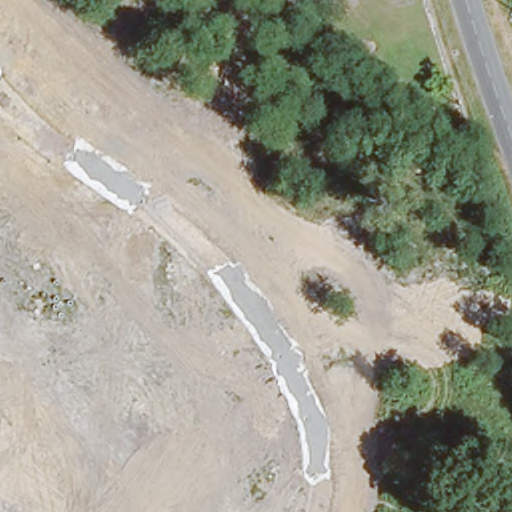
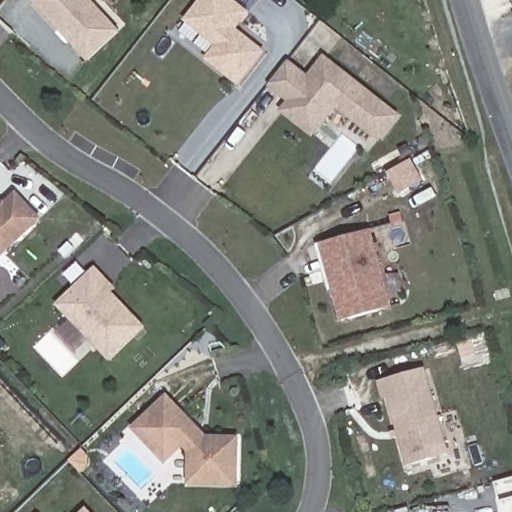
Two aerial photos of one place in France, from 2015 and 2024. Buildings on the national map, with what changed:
new [(87,0),(119,33),(88,62),(32,1),(33,0),(87,0)]
new [(266,52),(239,86),(204,60),(215,46),(184,21),(200,0),(233,0),(249,12),(237,29),(266,52)]
new [(256,0),(260,0),(258,2),(256,0)]
new [(323,55),(401,116),(380,143),(336,107),(312,137),(280,112),(287,102),(268,88),(288,60),(308,75),(323,55)]
new [(0,257),(0,202),(6,202),(16,192),(42,220),(1,258),(0,257)]
new [(342,321),(321,244),(368,231),(390,307),(342,321)]
new [(146,328),(110,362),(55,305),(95,267),(116,288),(112,292),(146,328)]
new [(425,370),(447,454),(406,464),(388,398),(383,399),(379,382),(425,370)]
new [(165,464),(131,428),(167,394),(206,436),(240,436),(239,487),(187,485),(188,455),(181,449),(165,464)]
new [(84,511),(84,512),(83,512),(84,511)]

